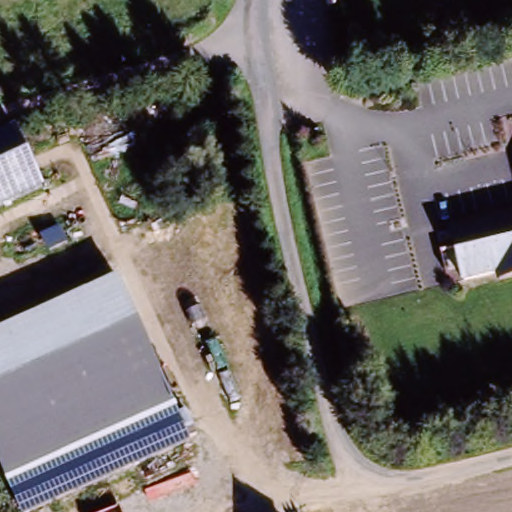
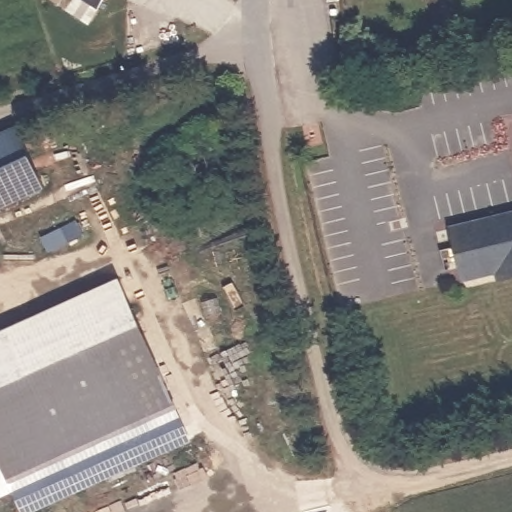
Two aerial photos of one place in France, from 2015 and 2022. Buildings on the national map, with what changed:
unchanged [(44,190),(0,209),(0,134),(15,127),(44,190)]
unchanged [(492,278),(459,287),(445,234),(512,216),(512,282),(494,287),(492,278)]
unchanged [(117,273),(158,370),(0,445),(0,325),(117,273)]
unchanged [(24,512),(21,512),(14,491),(0,495),(0,445),(158,370),(187,441),(24,512)]

